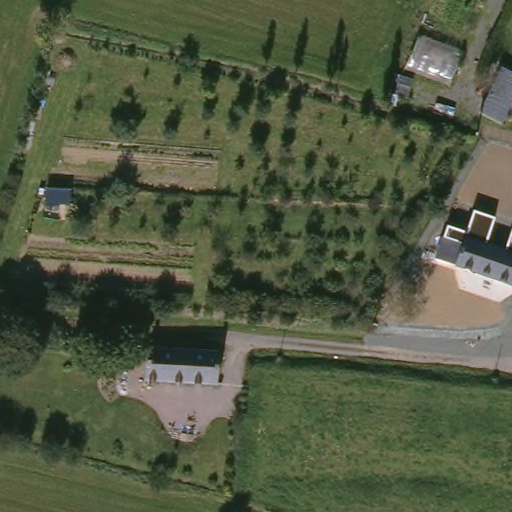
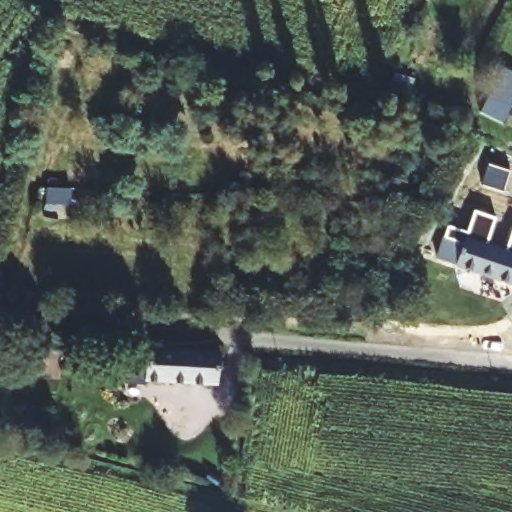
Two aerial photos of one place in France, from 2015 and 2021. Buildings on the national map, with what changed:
unchanged [(498,66),(512,73),(512,98),(501,121),(477,111),(498,66)]
unchanged [(448,225),(467,231),(475,211),(497,217),(488,240),(507,246),(512,232),(512,254),(464,240),(462,245),(443,240),(448,225)]
unchanged [(437,265),(438,261),(443,240),(462,245),(464,240),(512,254),(512,288),(437,265)]
unchanged [(228,384),(162,381),(162,377),(142,377),(144,347),(164,348),(231,353),(228,384)]

